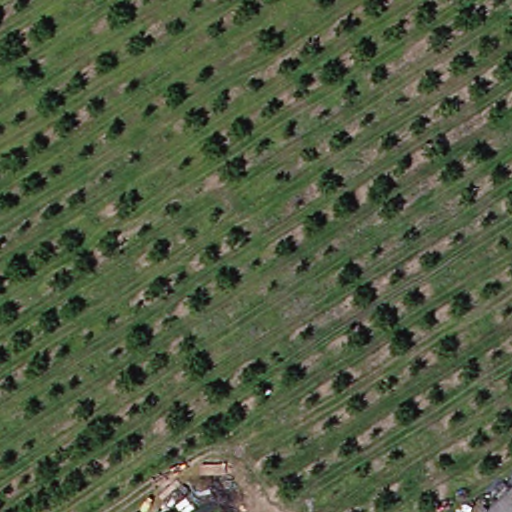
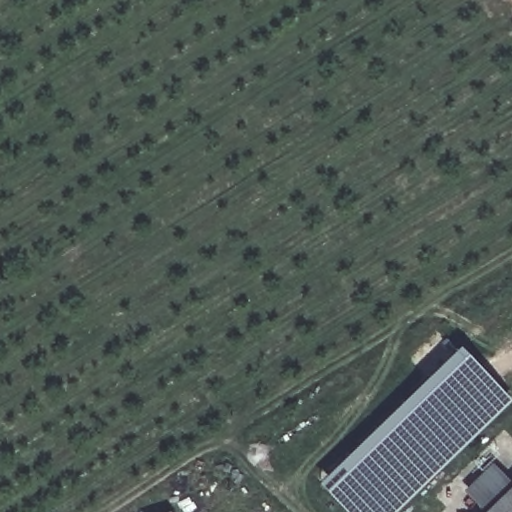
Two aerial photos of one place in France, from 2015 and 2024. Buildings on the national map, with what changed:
new [(317,481),(458,346),(511,400),(394,512),(347,512),(317,481)]
new [(492,462),(511,483),(483,512),(482,512),(462,490),(492,462)]
unchanged [(512,482),(512,512),(483,512),(512,482)]

